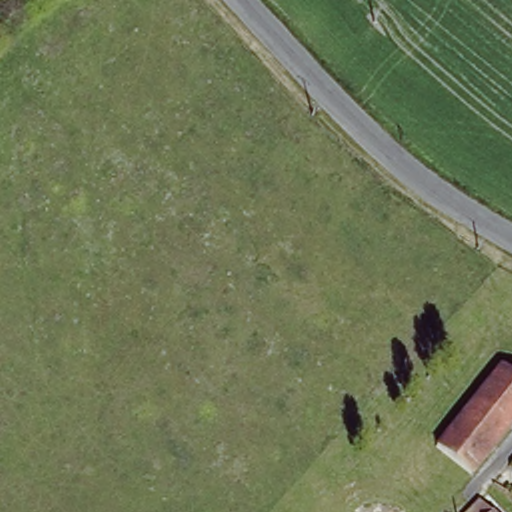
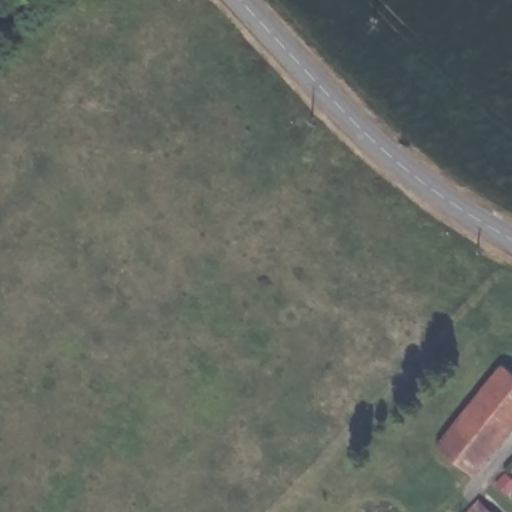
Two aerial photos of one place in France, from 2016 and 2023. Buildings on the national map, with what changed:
unchanged [(493,380),(507,362),(512,367),(512,421),(500,435),(468,410),(493,380)]
unchanged [(500,435),(459,484),(428,458),(468,410),(500,435)]
unchanged [(481,512),(472,512),(476,507),(481,512)]

